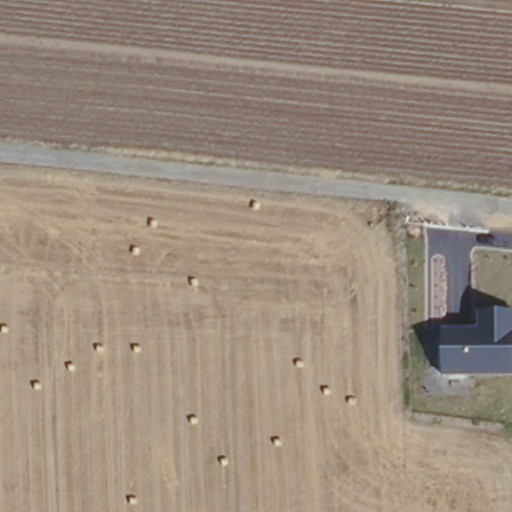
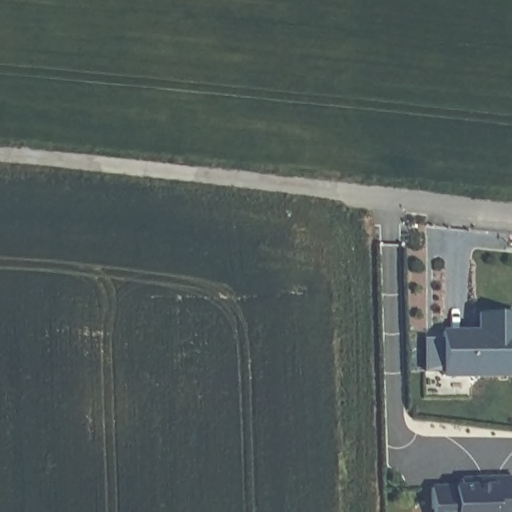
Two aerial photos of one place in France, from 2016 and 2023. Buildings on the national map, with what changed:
unchanged [(512,377),(444,377),(443,329),(475,329),(475,312),(512,312),(512,377)]
new [(457,477),(470,477),(512,477),(512,512),(428,512),(428,485),(457,485),(457,477)]

